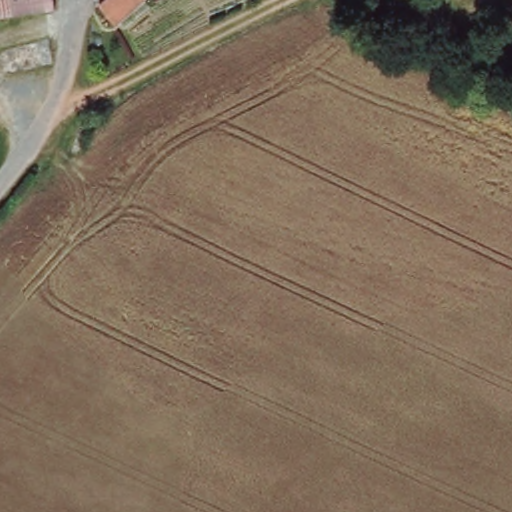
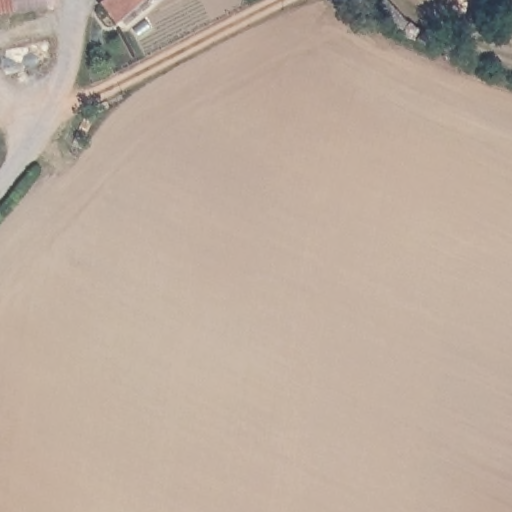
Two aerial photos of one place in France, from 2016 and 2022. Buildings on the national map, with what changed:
unchanged [(12,9),(0,11),(0,0),(11,0),(12,9)]
unchanged [(54,3),(12,9),(11,0),(53,0),(54,3)]
unchanged [(113,26),(97,5),(103,0),(148,0),(113,26)]

